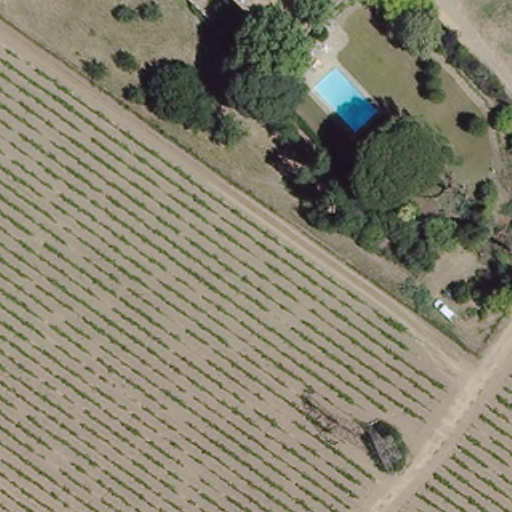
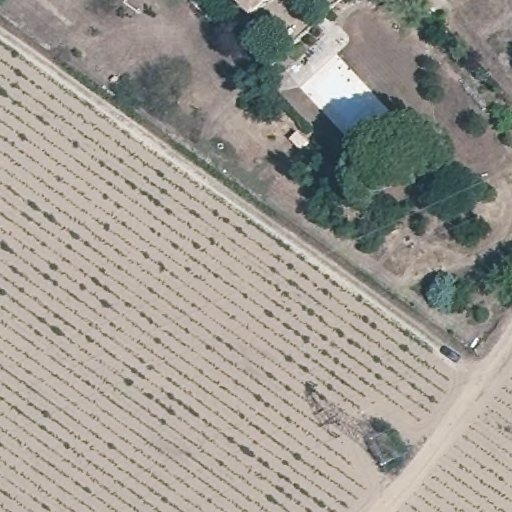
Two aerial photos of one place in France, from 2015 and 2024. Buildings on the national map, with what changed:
unchanged [(234,0),(276,0),(255,21),(234,0)]

